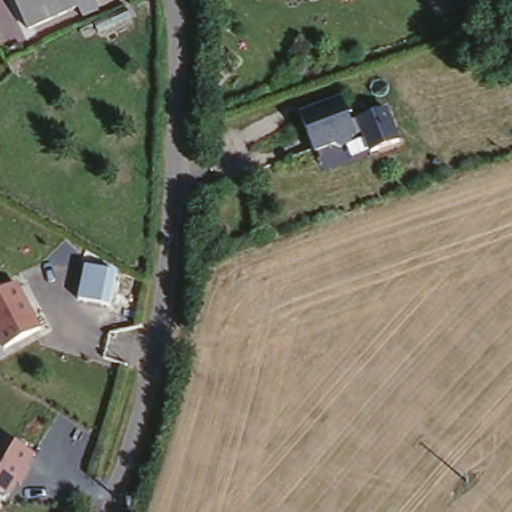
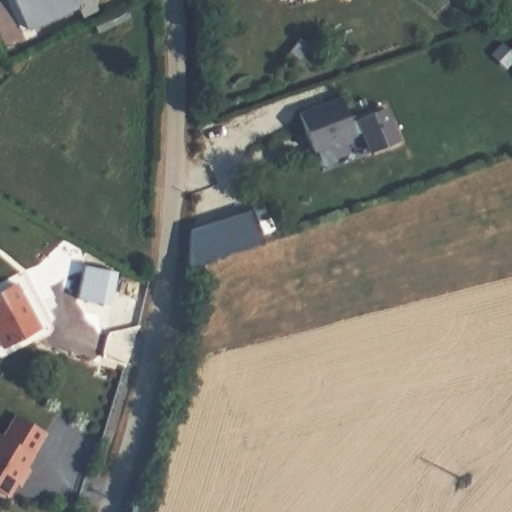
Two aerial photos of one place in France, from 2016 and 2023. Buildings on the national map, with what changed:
unchanged [(28,25),(17,0),(84,0),(28,25)]
unchanged [(132,18),(114,26),(110,16),(127,7),(132,18)]
unchanged [(341,103),(355,140),(313,156),(299,119),(301,118),(305,112),(316,107),(322,110),(341,103)]
new [(251,212),(262,243),(189,267),(191,230),(251,212)]
unchanged [(117,268),(105,320),(74,313),(85,261),(117,268)]
unchanged [(20,285),(42,326),(2,349),(0,345),(0,295),(20,285)]
unchanged [(34,456),(10,496),(0,491),(0,438),(34,456)]

